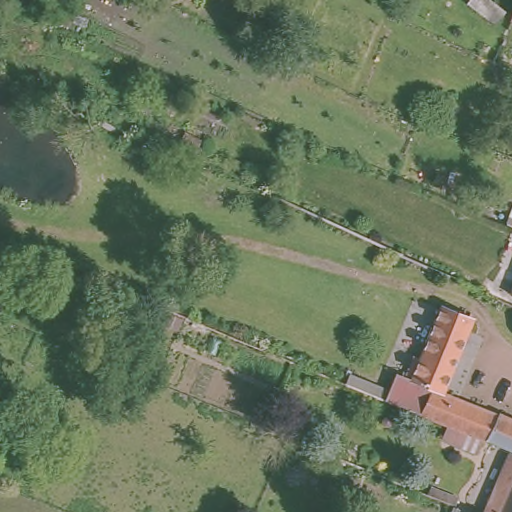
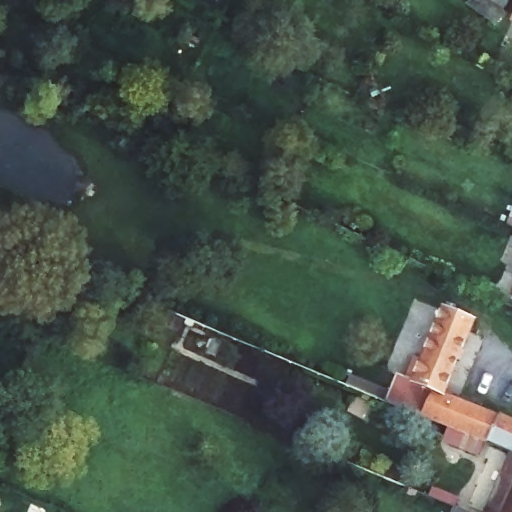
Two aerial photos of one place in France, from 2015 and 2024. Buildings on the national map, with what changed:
unchanged [(506,11),(495,26),(470,5),(473,0),(492,0),(506,11)]
unchanged [(427,382),(421,380),(450,307),(478,319),(450,392),(427,382)]
unchanged [(450,426),(415,411),(427,382),(450,392),(512,419),(512,452),(450,426)]
unchanged [(491,512),(512,464),(512,512),(491,512)]
unchanged [(411,500),(402,497),(407,486),(416,490),(411,500)]

